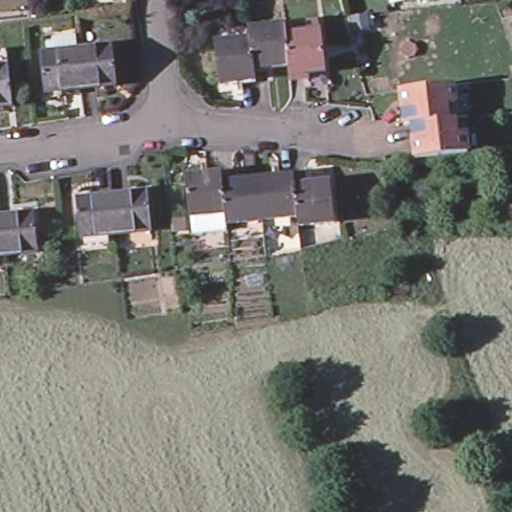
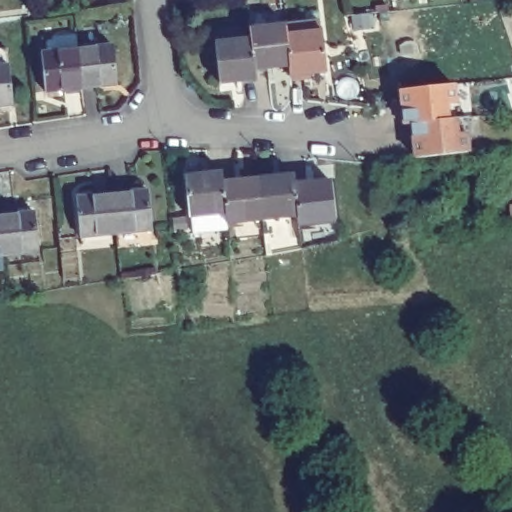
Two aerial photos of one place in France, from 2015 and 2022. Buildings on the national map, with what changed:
unchanged [(246,28),(282,24),(283,35),(286,69),(250,72),(247,39),(246,28)]
unchanged [(320,32),(323,73),(286,76),(286,69),(283,35),(320,32)]
unchanged [(250,72),(250,81),(215,84),(213,44),(247,39),(250,72)]
unchanged [(73,54),(107,50),(112,87),(78,91),(73,54)]
unchanged [(78,91),(42,95),(36,59),(73,54),(78,91)]
unchanged [(3,71),(7,109),(0,110),(0,56),(1,55),(3,71)]
unchanged [(411,87),(450,83),(450,84),(453,118),(415,122),(408,123),(406,123),(400,124),(396,89),(411,87)]
unchanged [(461,118),(465,153),(411,158),(408,123),(415,122),(453,118),(461,118)]
unchanged [(192,222),(190,179),(225,175),(226,185),(229,219),(192,222)]
unchanged [(266,222),(262,182),(296,178),(297,189),(301,218),(266,222)]
unchanged [(230,224),(229,219),(226,185),(262,182),(266,222),(230,224)]
unchanged [(335,184),(338,226),(302,229),(301,218),(297,189),(335,184)]
unchanged [(145,193),(148,230),(115,234),(110,197),(145,193)]
unchanged [(81,238),(76,200),(110,197),(115,234),(81,238)]
unchanged [(0,220),(33,216),(37,256),(1,260),(0,248),(0,220)]
unchanged [(0,260),(0,248),(1,260),(0,260)]

